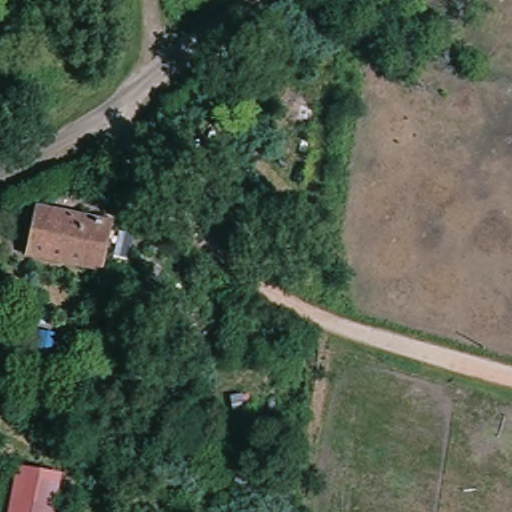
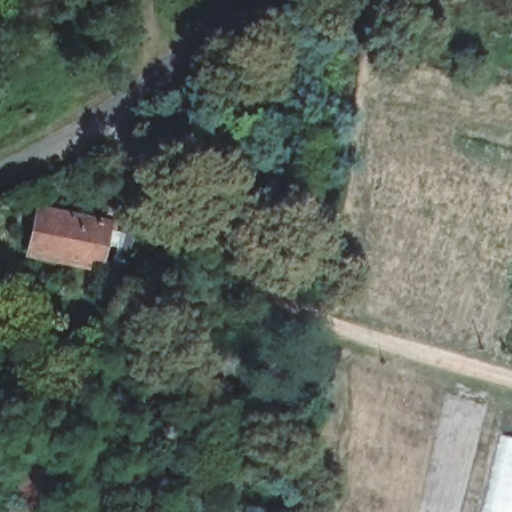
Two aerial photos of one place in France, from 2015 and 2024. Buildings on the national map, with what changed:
unchanged [(33,205),(111,221),(102,264),(24,248),(33,205)]
new [(500,434),(512,437),(512,512),(481,512),(500,434)]
unchanged [(6,471),(61,479),(55,512),(0,512),(6,471)]

